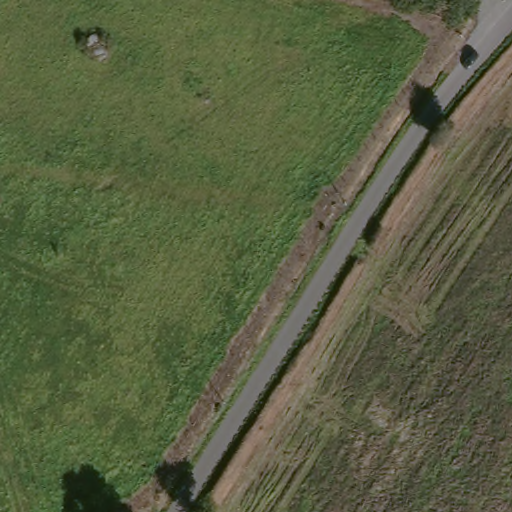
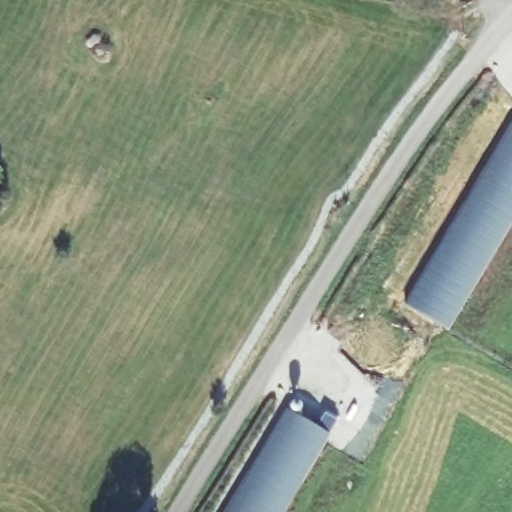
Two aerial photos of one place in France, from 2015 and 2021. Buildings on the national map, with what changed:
new [(406,304),(512,125),(512,219),(447,327),(406,304)]
new [(337,421),(328,435),(283,512),(225,512),(287,409),(317,427),(324,414),(337,421)]

